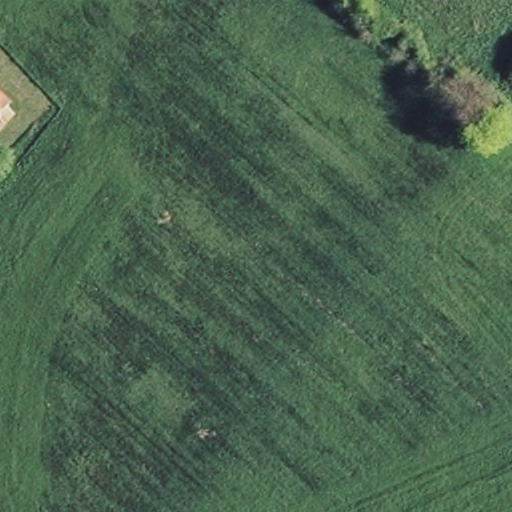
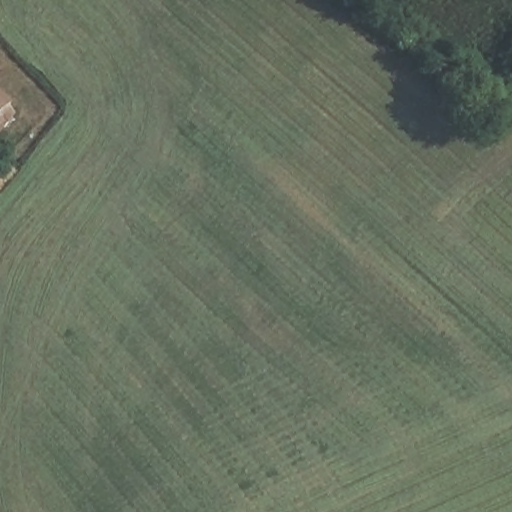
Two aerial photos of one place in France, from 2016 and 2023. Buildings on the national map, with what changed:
unchanged [(11,109),(9,111),(14,117),(0,133),(0,98),(11,109)]

